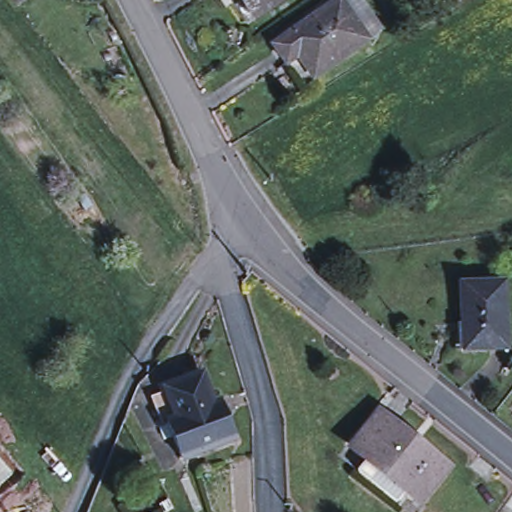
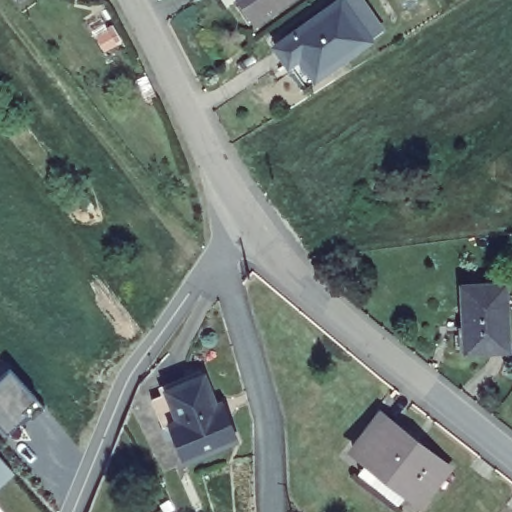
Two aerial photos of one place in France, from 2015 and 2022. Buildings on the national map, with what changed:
unchanged [(257,18),(245,0),(284,0),(257,18)]
unchanged [(370,46),(318,83),(302,60),(288,69),(275,50),(341,4),(370,46)]
unchanged [(503,283),(507,348),(465,350),(461,285),(503,283)]
new [(45,408),(25,426),(24,418),(19,422),(6,433),(0,426),(0,379),(10,370),(33,398),(45,408)]
unchanged [(207,380),(220,410),(226,408),(241,443),(188,465),(174,430),(168,432),(157,404),(172,398),(171,395),(207,380)]
unchanged [(362,468),(372,456),(358,445),(385,411),(450,462),(424,497),(411,487),(402,498),(362,468)]
unchanged [(0,483),(0,456),(13,471),(0,483)]

